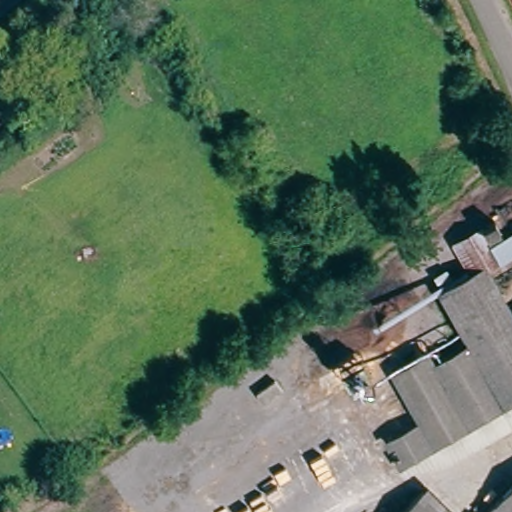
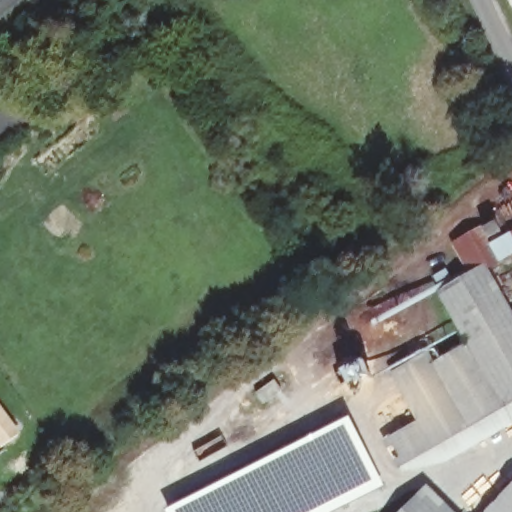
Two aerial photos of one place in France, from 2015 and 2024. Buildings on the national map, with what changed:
unchanged [(485,239),(494,255),(499,253),(490,238),(500,232),(509,247),(512,245),(512,266),(508,268),(491,278),(475,287),(458,255),(485,239)]
unchanged [(509,415),(475,357),(445,305),(475,287),(491,278),(512,312),(512,414),(509,415)]
unchanged [(509,415),(472,438),(439,379),(475,357),(509,415)]
unchanged [(439,379),(472,438),(439,458),(423,431),(397,386),(432,366),(439,379)]
new [(3,447),(0,444),(0,406),(21,433),(3,447)]
demolished [(249,432),(227,452),(211,434),(233,414),(249,432)]
new [(385,485),(333,512),(166,512),(164,509),(350,415),(385,485)]
unchanged [(439,458),(403,480),(387,453),(423,431),(439,458)]
unchanged [(475,512),(400,512),(436,475),(475,512)]
unchanged [(484,512),(512,484),(512,512),(484,512)]

